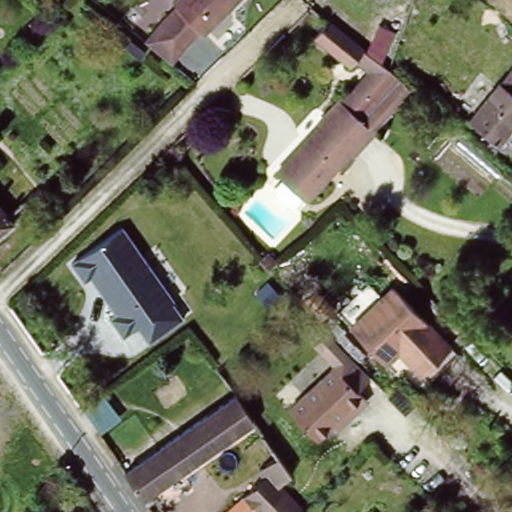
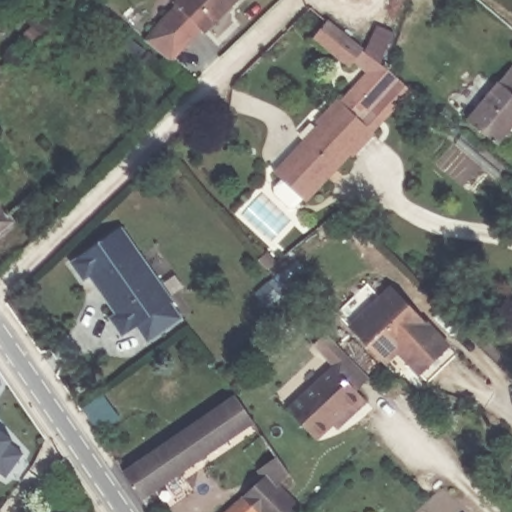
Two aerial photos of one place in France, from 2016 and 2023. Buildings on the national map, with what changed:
unchanged [(162,1),(164,0),(233,0),(193,36),(168,9),(162,1)]
unchanged [(168,9),(193,36),(167,60),(140,40),(168,9)]
unchanged [(384,68),(347,109),(340,103),(369,74),(355,61),(348,70),(310,43),(327,21),(384,68)]
unchanged [(360,120),(370,130),(350,154),(346,151),(302,198),(299,194),(290,204),(283,204),(269,190),(269,183),(277,174),(273,170),(315,123),(313,120),(335,98),(340,103),(347,109),(384,68),(397,79),(360,120)]
unchanged [(512,85),(512,127),(499,144),(469,121),(502,78),(512,85)]
unchanged [(1,192),(0,191),(0,183),(9,176),(10,178),(19,171),(22,175),(25,172),(40,189),(12,214),(16,218),(0,233),(0,193),(1,192)]
unchanged [(135,325),(121,335),(108,317),(115,313),(89,276),(82,280),(70,262),(120,227),(172,300),(170,301),(182,318),(169,327),(147,342),(135,325)]
unchanged [(270,250),(278,261),(269,268),(260,258),(270,250)]
unchanged [(382,356),(350,323),(395,282),(451,343),(422,370),(399,346),(385,360),(382,356)]
unchanged [(340,423),(308,453),(280,424),(326,380),(309,362),(306,358),(320,346),(322,349),(326,353),(345,374),(360,390),(347,403),(358,415),(345,427),(340,423)]
unchanged [(143,503),(125,477),(185,435),(237,400),(255,426),(143,503)]
new [(15,439),(10,445),(24,454),(7,478),(0,472),(0,429),(15,439)]
unchanged [(247,499),(265,481),(257,473),(277,459),(297,487),(290,493),(282,484),(280,485),(287,496),(300,512),(232,512),(247,499)]

